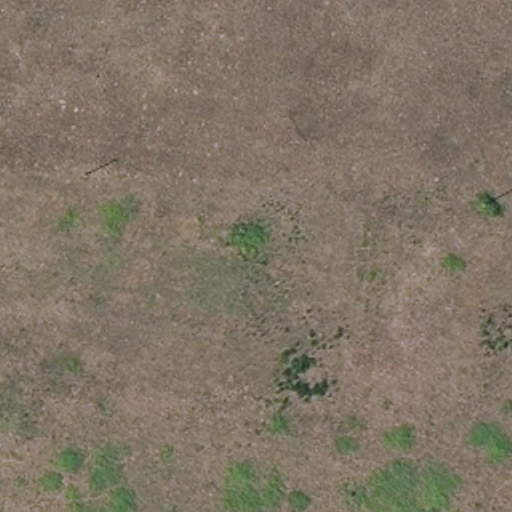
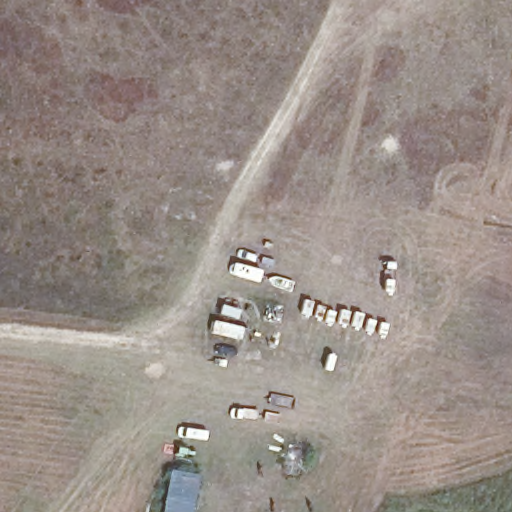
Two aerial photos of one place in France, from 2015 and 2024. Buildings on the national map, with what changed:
new [(200,476),(193,512),(163,512),(171,468),(200,476)]

